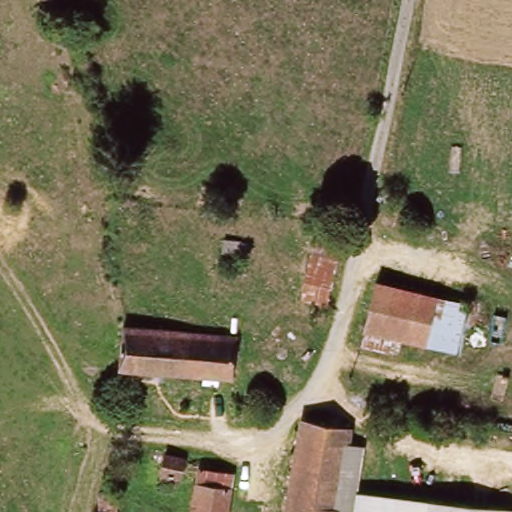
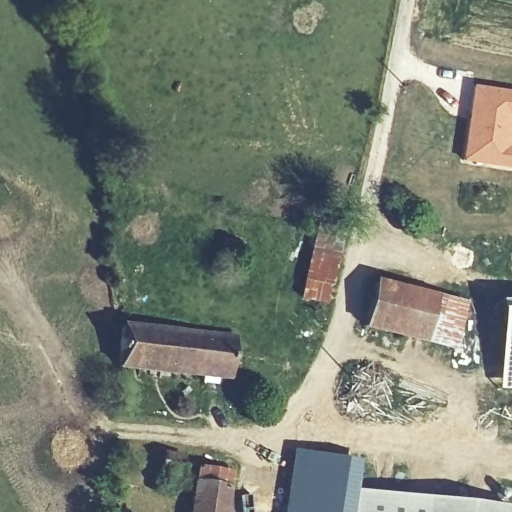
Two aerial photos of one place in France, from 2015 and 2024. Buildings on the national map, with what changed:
new [(512,91),(512,129),(510,145),(512,145),(512,169),(460,162),(471,85),(512,91)]
unchanged [(340,241),(328,302),(299,296),(312,237),(340,241)]
unchanged [(374,279),(435,292),(467,301),(457,349),(360,329),(374,279)]
new [(512,392),(496,393),(495,302),(512,301),(512,392)]
unchanged [(240,338),(235,378),(117,366),(123,325),(155,329),(240,338)]
unchanged [(347,429),(345,441),(332,512),(280,512),(295,420),(347,429)]
unchanged [(357,490),(353,512),(332,512),(345,441),(364,445),(357,490)]
unchanged [(174,479),(172,488),(160,486),(160,477),(154,473),(158,447),(180,453),(177,478),(174,479)]
unchanged [(230,475),(225,512),(189,512),(195,470),(230,475)]
unchanged [(116,512),(97,512),(97,488),(116,488),(116,512)]
unchanged [(425,497),(423,512),(353,512),(357,490),(425,497)]
unchanged [(458,512),(423,512),(425,497),(460,502),(458,512)]
unchanged [(507,508),(506,512),(458,512),(460,502),(507,508)]

